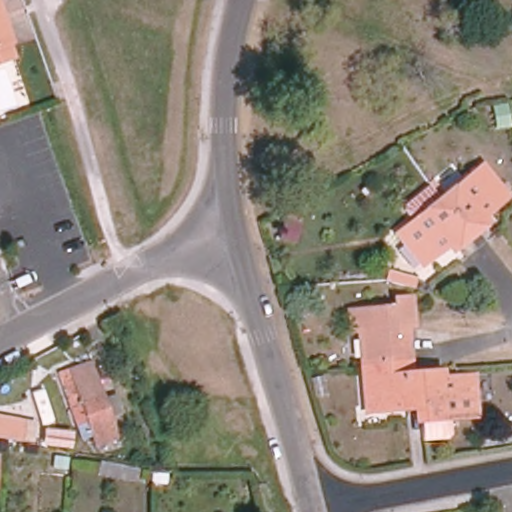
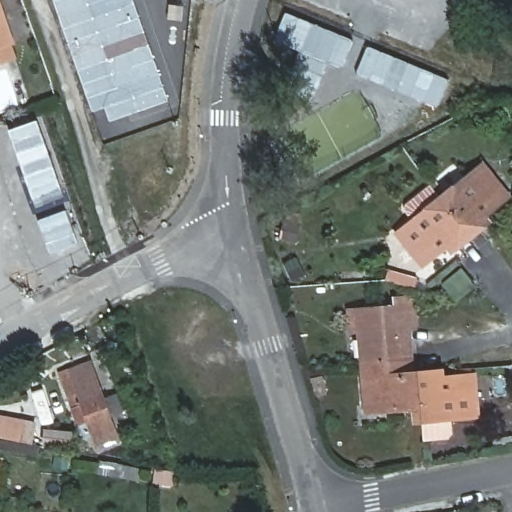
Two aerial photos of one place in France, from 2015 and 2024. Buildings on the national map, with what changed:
new [(110,120),(106,107),(94,111),(56,0),(134,0),(169,99),(110,120)]
new [(351,42),(341,69),(323,61),(306,101),(281,90),(298,50),(270,40),(280,13),(351,42)]
unchanged [(0,57),(0,20),(11,53),(0,57)]
new [(351,72),(362,45),(443,79),(432,106),(351,72)]
unchanged [(510,125),(496,127),(492,107),(507,104),(510,125)]
new [(8,130),(37,120),(61,191),(32,200),(8,130)]
unchanged [(507,197),(478,220),(482,226),(469,237),(439,200),(482,166),(507,197)]
unchanged [(469,237),(456,247),(451,241),(422,265),(397,234),(439,200),(469,237)]
unchanged [(421,284),(418,293),(390,285),(393,276),(421,284)]
unchanged [(417,331),(400,332),(402,350),(409,349),(411,365),(365,369),(362,334),(353,335),(351,315),(399,311),(398,304),(415,302),(417,331)]
unchanged [(412,380),(421,378),(424,411),(369,416),(365,369),(411,365),(412,380)]
unchanged [(116,442),(96,450),(87,425),(77,428),(59,378),(90,368),(116,442)]
unchanged [(326,393),(315,395),(311,378),(322,376),(326,393)]
unchanged [(479,420),(453,423),(454,431),(426,433),(424,411),(421,378),(437,377),(438,377),(439,385),(476,381),(479,420)]
unchanged [(19,442),(0,438),(0,416),(24,421),(19,442)]

